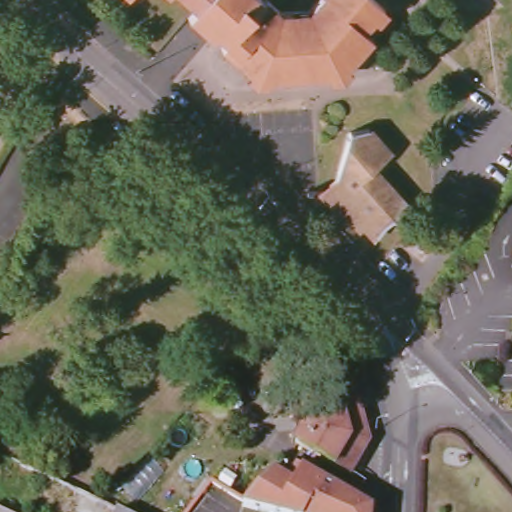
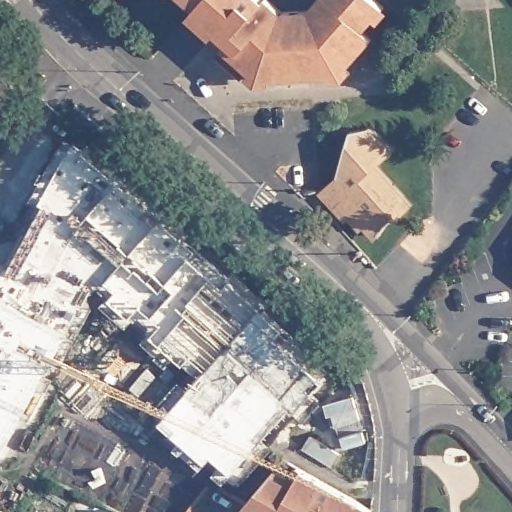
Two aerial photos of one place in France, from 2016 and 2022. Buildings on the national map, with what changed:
unchanged [(171,0),(204,0),(189,16),(171,0)]
unchanged [(184,22),(189,16),(204,0),(241,0),(204,40),(184,22)]
unchanged [(242,0),(255,11),(257,9),(273,23),(301,20),(315,4),(317,6),(323,0),(356,0),(376,17),(357,39),(366,48),(332,84),(250,90),(213,59),(218,53),(204,40),(241,0),(242,0)]
unchanged [(357,132),(377,129),(397,151),(379,168),(416,207),(406,216),(405,222),(397,222),(387,235),(372,225),(367,228),(357,215),(355,217),(346,207),(346,202),(346,199),(347,195),(350,191),(337,181),(357,132)]
unchanged [(308,439),(301,415),(333,406),(329,393),(359,384),(377,447),(359,479),(302,450),(308,439)]
unchanged [(246,510),(272,472),(297,482),(302,471),(377,508),(376,512),(251,512),(246,510)]
unchanged [(0,509),(8,512),(0,512),(0,509)]

